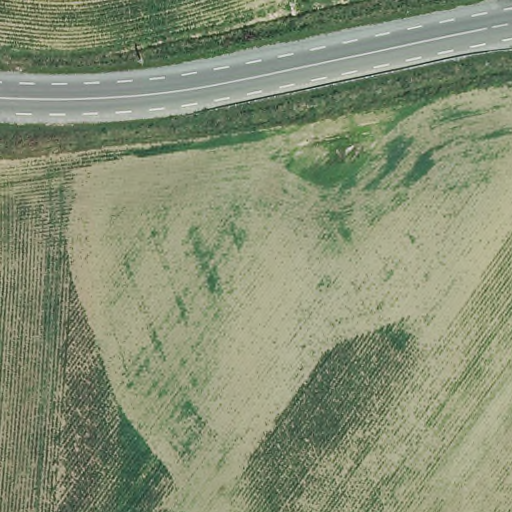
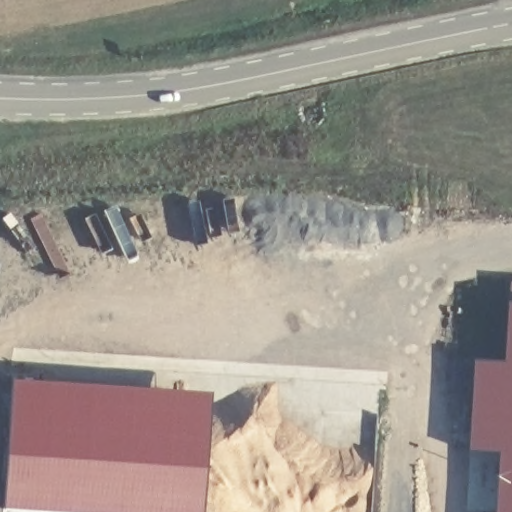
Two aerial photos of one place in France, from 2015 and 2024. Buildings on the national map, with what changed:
new [(510,282),(512,282),(512,301),(508,301),(510,282)]
new [(470,452),(475,359),(505,361),(508,301),(512,301),(512,454),(500,454),(470,452)]
new [(203,512),(0,512),(0,508),(9,384),(207,397),(203,512)]
new [(512,454),(512,512),(496,512),(500,454),(512,454)]

